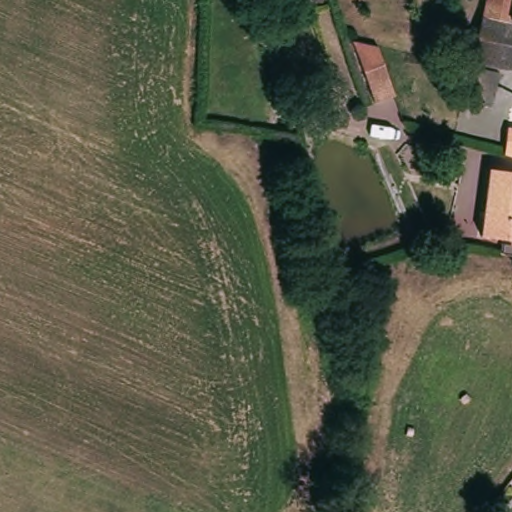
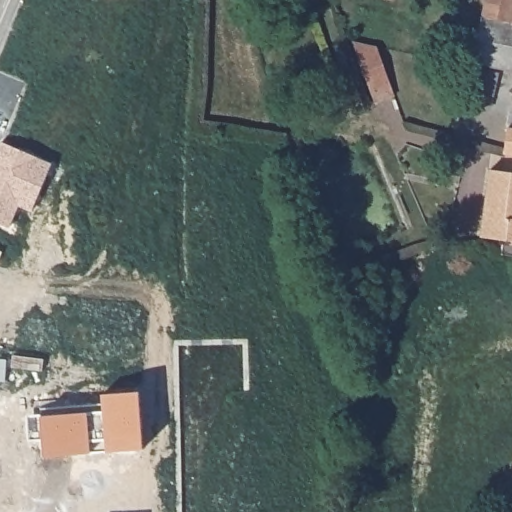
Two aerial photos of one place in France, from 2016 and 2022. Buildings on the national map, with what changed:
unchanged [(489,0),(512,0),(512,68),(477,60),(489,0)]
unchanged [(393,99),(373,105),(353,45),(379,50),(393,99)]
unchanged [(486,105),(468,100),(475,66),(505,73),(499,101),(497,107),(486,105)]
unchanged [(512,135),(512,154),(509,153),(512,135)]
new [(3,141),(55,163),(34,212),(20,205),(11,228),(0,224),(0,148),(3,141)]
unchanged [(490,170),(512,173),(512,240),(482,236),(490,170)]
new [(4,251),(0,263),(0,250),(4,251)]
new [(104,395),(103,385),(140,383),(146,448),(46,456),(42,401),(104,395)]

